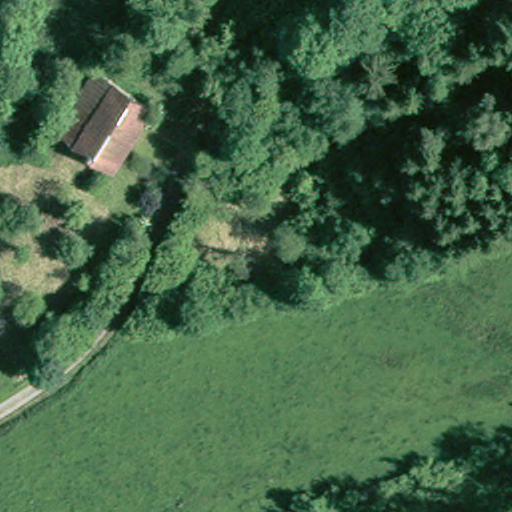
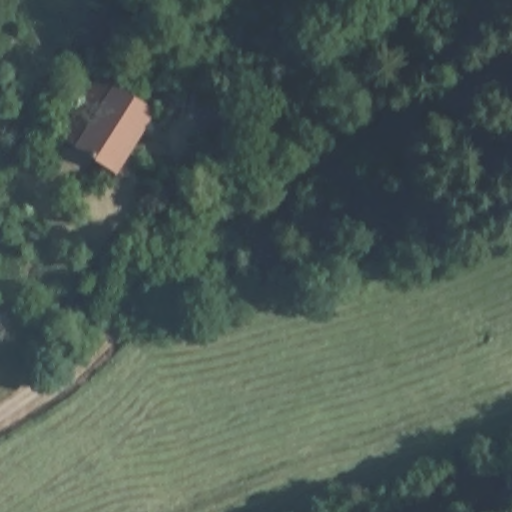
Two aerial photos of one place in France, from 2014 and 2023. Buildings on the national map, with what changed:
unchanged [(82,145),(60,132),(95,70),(115,81),(82,145)]
unchanged [(162,110),(130,171),(104,157),(98,167),(89,160),(92,151),(82,145),(115,81),(162,110)]

